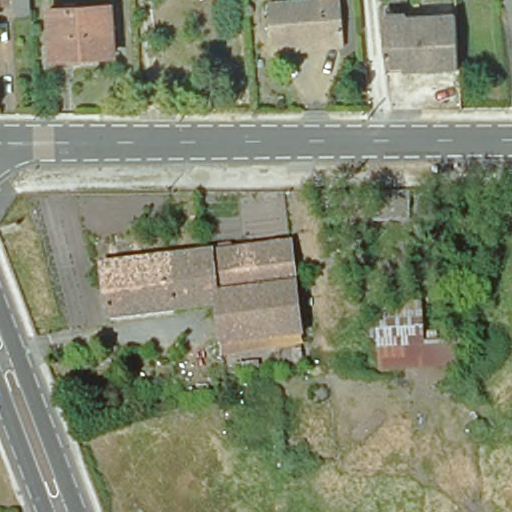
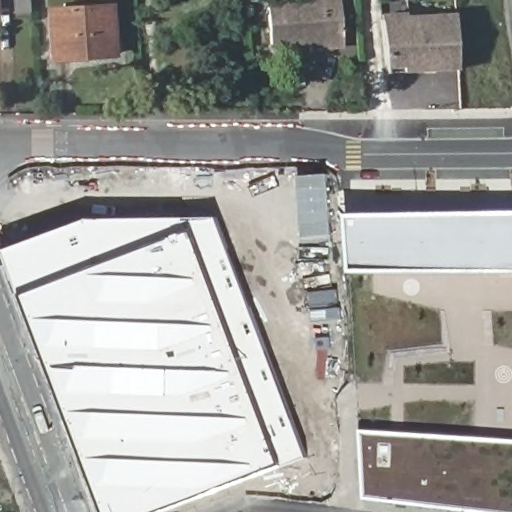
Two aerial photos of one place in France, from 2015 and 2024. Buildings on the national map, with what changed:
unchanged [(1,0),(1,2),(0,3),(0,0),(1,0)]
unchanged [(9,0),(24,0),(25,10),(10,10),(9,0)]
unchanged [(267,46),(264,7),(313,4),(313,0),(335,0),(335,2),(338,41),(339,49),(268,54),(267,46)]
unchanged [(50,7),(110,5),(112,53),(53,55),(50,7)]
unchanged [(402,64),(386,65),(383,31),(382,10),(400,10),(455,7),(457,61),(433,62),(423,63),(402,64)]
new [(298,176),(328,175),(332,235),(303,237),(298,176)]
new [(512,277),(351,277),(343,197),(512,197),(512,277)]
new [(310,467),(198,512),(96,512),(0,252),(0,242),(101,205),(119,249),(214,212),(310,467)]
demolished [(210,254),(290,242),(302,335),(300,335),(233,343),(221,345),(216,307),(210,254)]
demolished [(110,321),(102,268),(170,259),(179,310),(110,321)]
demolished [(382,366),(379,325),(425,321),(426,355),(427,363),(382,366)]
demolished [(447,354),(463,353),(465,372),(448,373),(447,354)]
new [(365,430),(512,438),(512,512),(493,512),(369,497),(365,430)]

